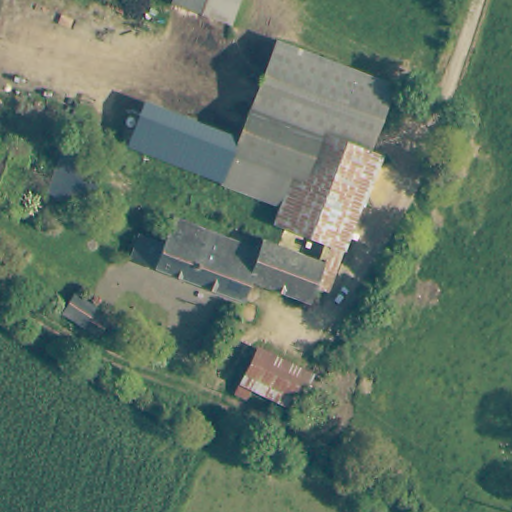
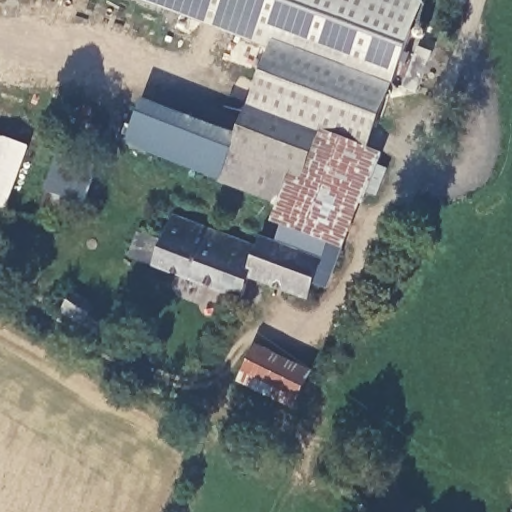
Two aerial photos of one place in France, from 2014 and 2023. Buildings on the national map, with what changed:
new [(277,52),(140,0),(422,0),(426,1),(396,78),(282,37),(277,52)]
unchanged [(319,125),(289,201),(229,179),(282,37),(405,82),(398,102),(381,148),(319,125)]
unchanged [(128,145),(144,100),(245,138),(229,179),(128,145)]
unchanged [(324,256),(321,255),(313,252),(321,232),(283,218),(285,213),(289,201),(319,125),(381,148),(388,151),(344,263),(324,256)]
unchanged [(6,130),(38,143),(12,206),(0,201),(0,146),(6,130)]
unchanged [(41,181),(58,185),(69,146),(98,160),(69,228),(30,213),(41,181)]
unchanged [(132,270),(143,242),(163,249),(176,213),(265,246),(255,273),(238,315),(132,270)]
unchanged [(265,246),(270,237),(313,252),(321,255),(324,256),(311,293),(255,273),(265,246)]
unchanged [(67,291),(75,295),(87,302),(85,305),(102,315),(94,328),(58,308),(67,291)]
unchanged [(263,346),(317,373),(305,396),(251,369),(263,346)]

